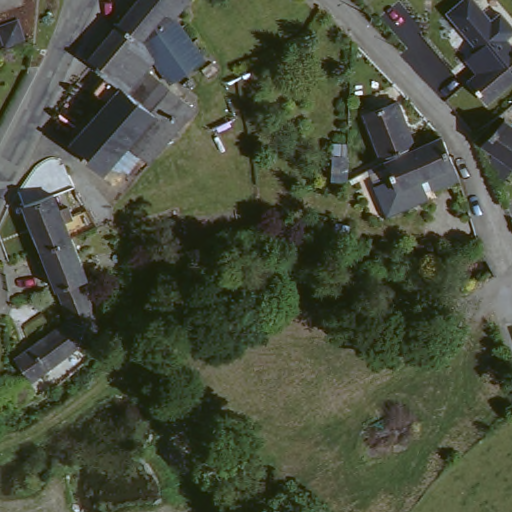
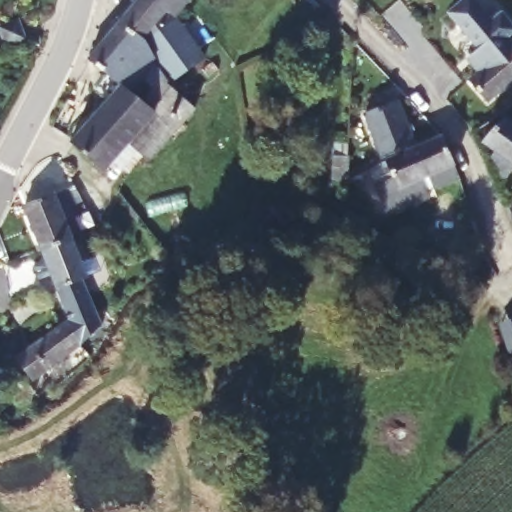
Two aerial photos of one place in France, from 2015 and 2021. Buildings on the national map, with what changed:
unchanged [(111,164),(107,167),(79,138),(119,100),(105,91),(115,74),(94,60),(143,0),(189,0),(178,14),(184,22),(209,58),(175,80),(158,55),(154,60),(152,61),(154,64),(168,78),(194,106),(158,153),(148,157),(144,153),(129,171),(111,164)]
unchanged [(446,11),(460,0),(476,0),(492,19),(501,11),(512,23),(512,33),(507,38),(512,45),(512,47),(511,47),(497,60),(486,46),(479,53),(446,11)]
unchanged [(28,21),(34,37),(15,45),(8,30),(28,21)]
unchanged [(479,53),(486,46),(497,60),(511,47),(512,47),(512,79),(492,96),(465,65),(479,53)]
unchanged [(401,97),(414,143),(380,152),(367,108),(401,97)]
unchanged [(493,155),(499,148),(486,140),(484,139),(508,115),(512,118),(512,175),(506,183),(493,155)]
unchanged [(424,140),(433,135),(441,132),(459,169),(461,177),(430,191),(433,197),(389,214),(388,214),(372,174),(369,166),(383,160),(424,140)]
unchanged [(339,139),(354,140),(349,177),(334,175),(339,139)]
unchanged [(44,169),(51,158),(54,158),(60,159),(63,159),(65,160),(68,162),(70,165),(73,173),(83,198),(63,205),(68,220),(75,218),(80,230),(73,233),(78,249),(54,256),(47,259),(25,199),(44,169)]
unchanged [(54,256),(78,249),(94,288),(88,290),(107,338),(82,355),(68,317),(47,259),(54,256)]
unchanged [(43,383),(19,352),(68,317),(82,355),(43,383)]

